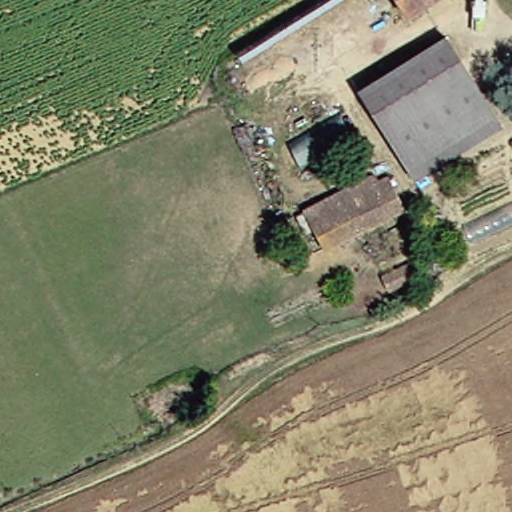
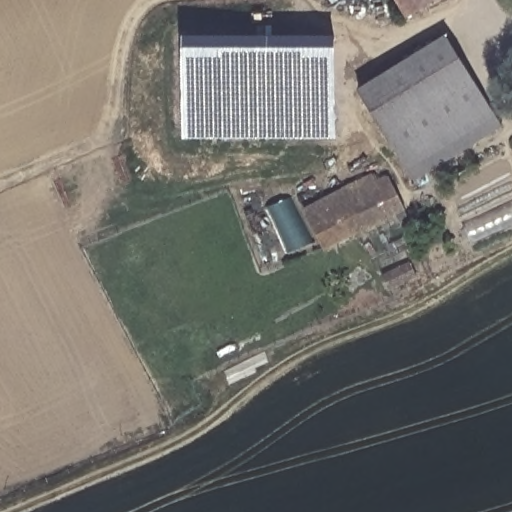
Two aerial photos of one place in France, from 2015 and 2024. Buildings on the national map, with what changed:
unchanged [(401,12),(393,0),(419,0),(401,12)]
unchanged [(358,89),(441,36),(488,112),(405,165),(358,89)]
new [(336,37),(336,138),(185,138),(185,37),(336,37)]
unchanged [(488,112),(495,123),(412,176),(405,165),(488,112)]
unchanged [(368,174),(387,213),(313,250),(295,213),(368,174)]
unchanged [(392,287),(387,277),(413,265),(418,275),(392,287)]

